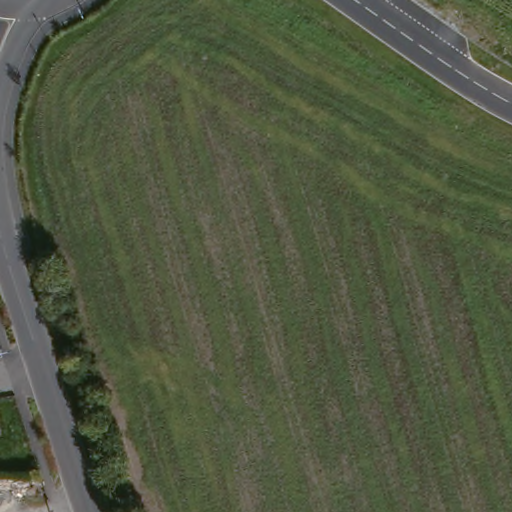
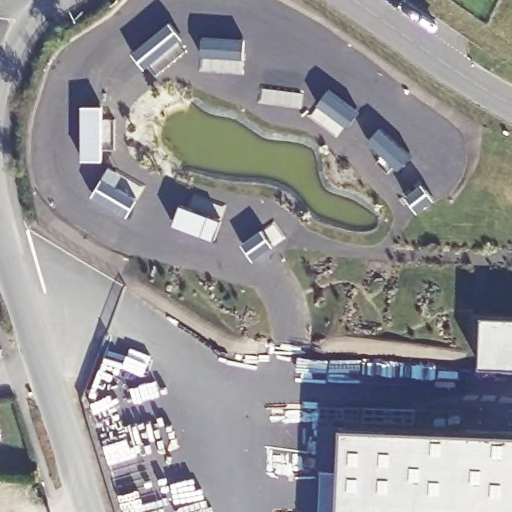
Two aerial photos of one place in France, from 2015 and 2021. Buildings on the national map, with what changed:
new [(482,313),(512,315),(512,366),(481,365),(482,313)]
new [(345,463),(347,426),(512,433),(512,512),(321,512),(323,467),(345,463)]

